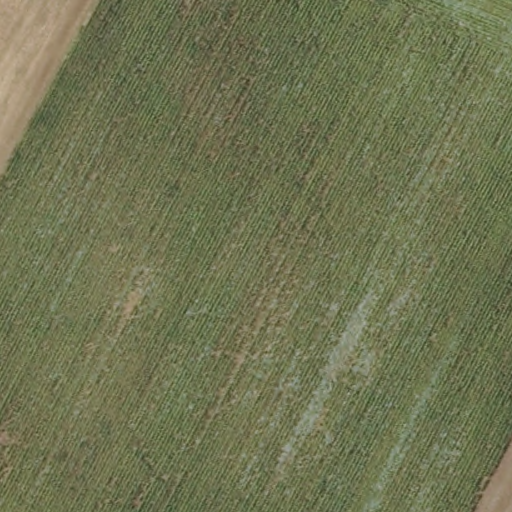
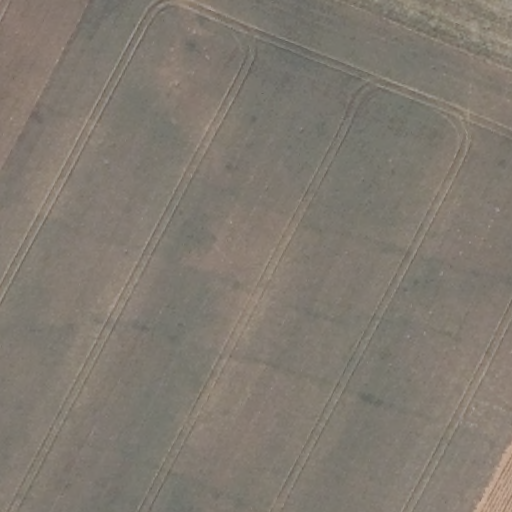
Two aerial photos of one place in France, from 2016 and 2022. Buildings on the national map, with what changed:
[]

